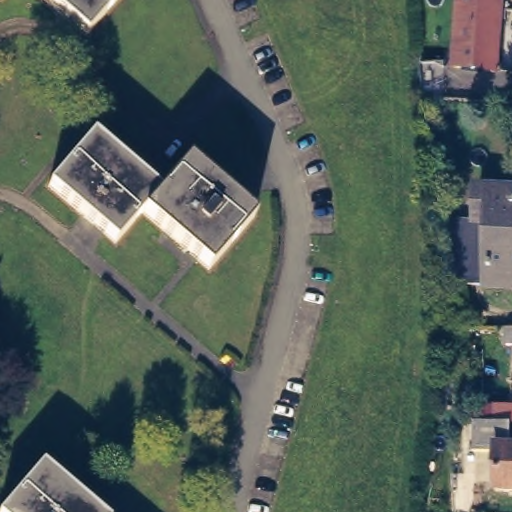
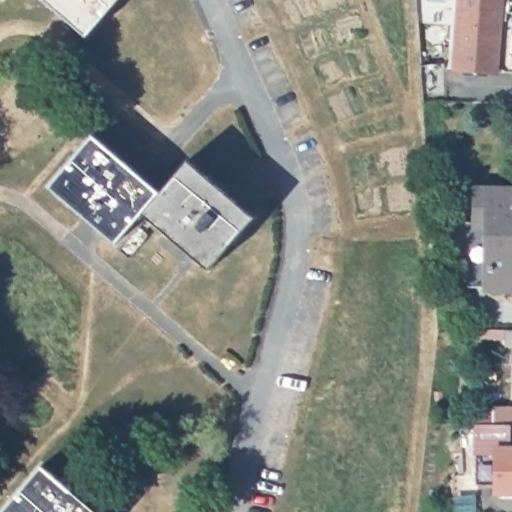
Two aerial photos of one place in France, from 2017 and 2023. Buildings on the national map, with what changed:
unchanged [(86,32),(49,0),(114,0),(86,32)]
unchanged [(460,63),(458,57),(464,0),(506,0),(501,66),(460,63)]
unchanged [(192,155),(259,212),(213,266),(147,209),(120,239),(53,182),(97,130),(165,187),(192,155)]
unchanged [(488,287),(492,225),(480,224),(481,190),(512,191),(512,288),(488,287)]
unchanged [(505,348),(505,329),(512,329),(512,348),(505,348)]
unchanged [(496,448),(495,454),(475,455),(474,424),(506,424),(506,409),(512,409),(512,425),(511,425),(511,448),(496,448)]
unchanged [(512,449),(512,493),(495,493),(495,454),(496,448),(511,448),(512,449)]
unchanged [(101,512),(0,512),(0,509),(41,460),(101,512)]

